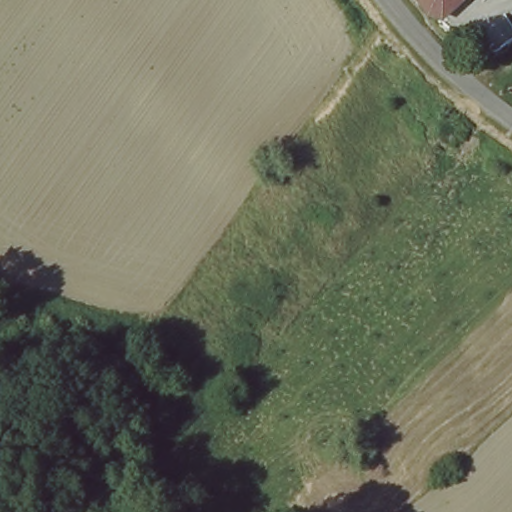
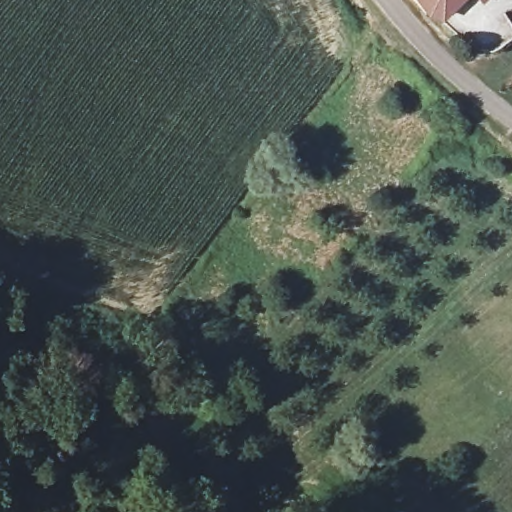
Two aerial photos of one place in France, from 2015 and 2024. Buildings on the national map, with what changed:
unchanged [(437,22),(418,0),(461,0),(437,22)]

